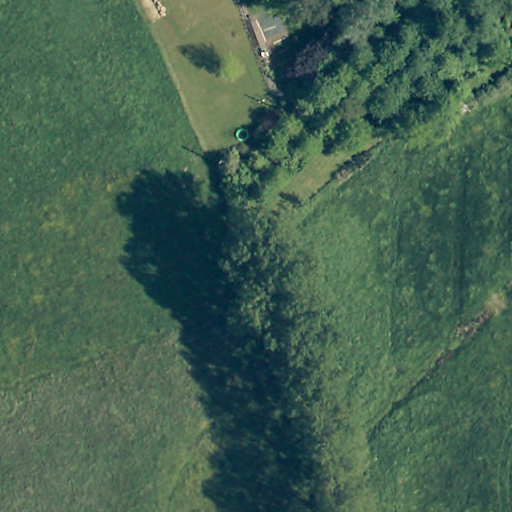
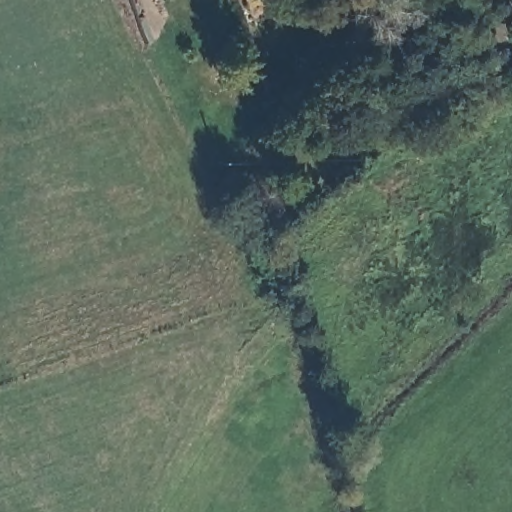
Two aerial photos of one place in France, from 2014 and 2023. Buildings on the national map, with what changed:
[]

